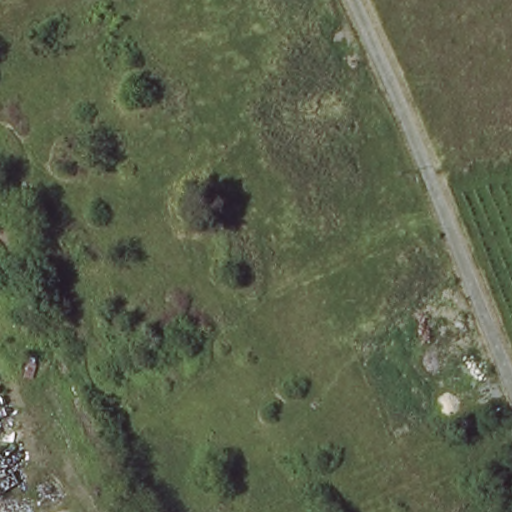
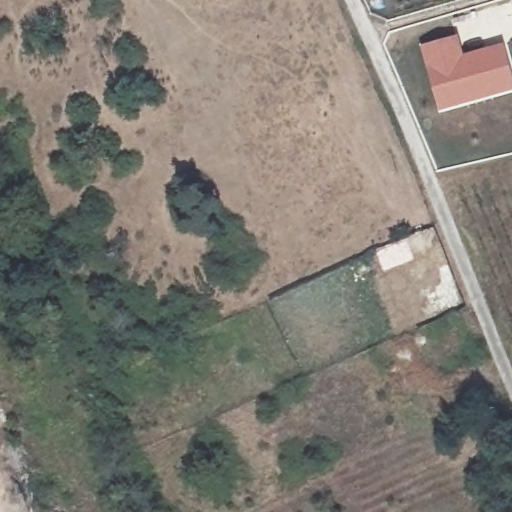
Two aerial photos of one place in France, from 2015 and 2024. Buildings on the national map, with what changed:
new [(465,56),(506,45),(512,68),(512,91),(441,112),(423,48),(460,38),(465,56)]

